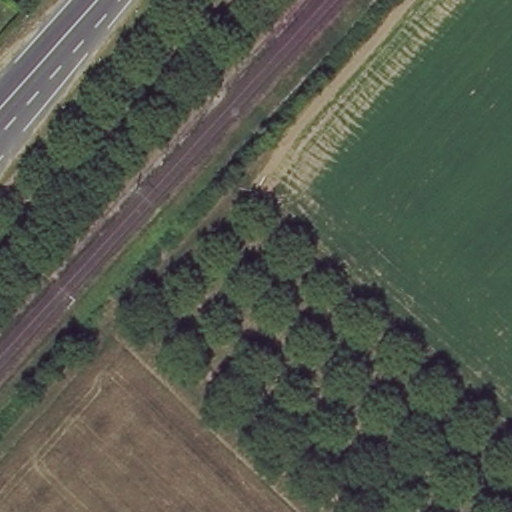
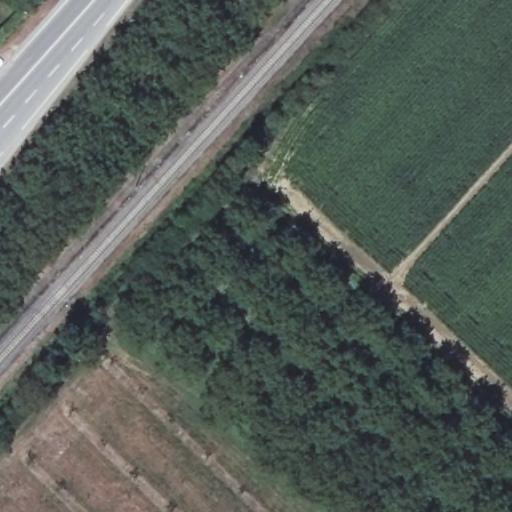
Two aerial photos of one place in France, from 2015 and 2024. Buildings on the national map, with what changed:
[]

